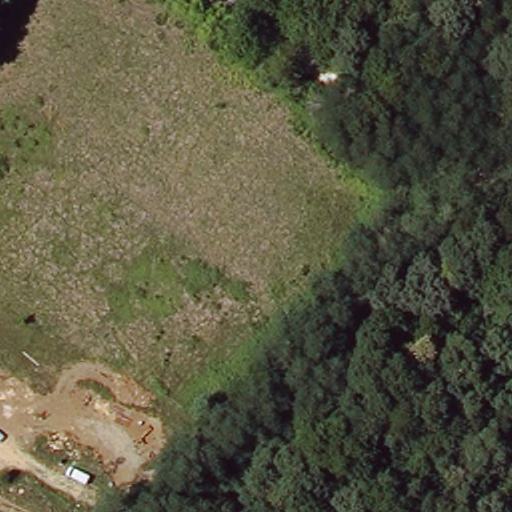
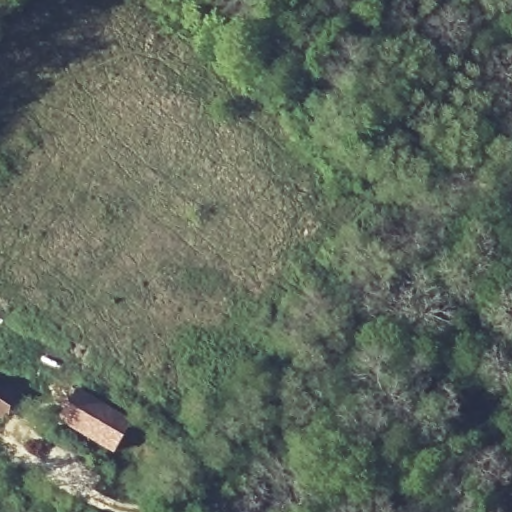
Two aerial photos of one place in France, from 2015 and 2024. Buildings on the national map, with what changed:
new [(15,395),(1,418),(0,417),(0,385),(15,395)]
new [(77,388),(130,422),(112,450),(59,418),(77,388)]

